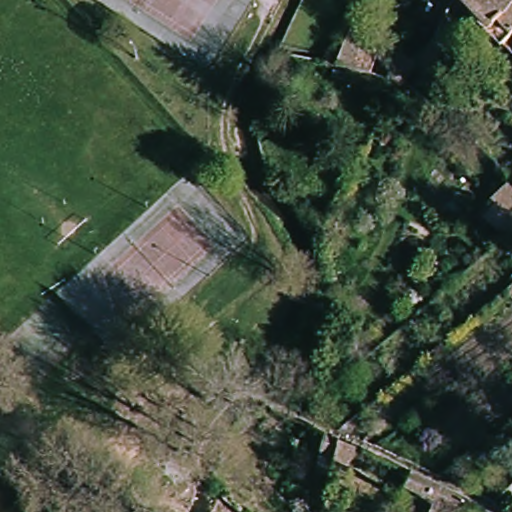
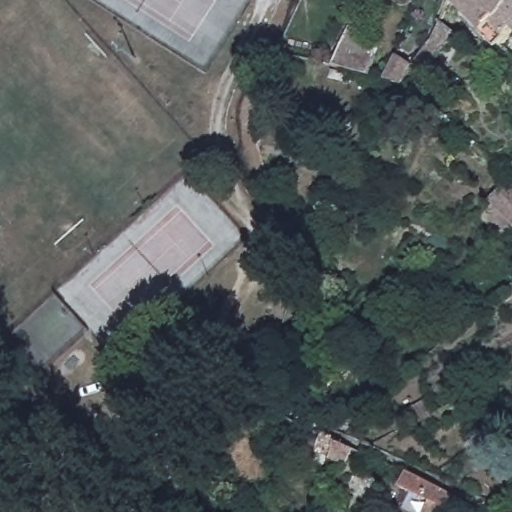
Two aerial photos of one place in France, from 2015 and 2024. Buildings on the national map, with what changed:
unchanged [(503,18),(512,27),(512,31),(500,46),(461,7),(453,0),(512,0),(512,8),(503,18)]
unchanged [(512,8),(512,27),(503,18),(512,8)]
unchanged [(427,76),(417,67),(407,90),(385,82),(398,53),(414,65),(449,13),(467,35),(427,76)]
unchanged [(379,50),(367,81),(335,72),(343,40),(350,43),(353,36),(379,50)]
unchanged [(489,200),(508,178),(512,182),(512,221),(489,200)]
unchanged [(328,482),(315,479),(324,437),(337,444),(328,482)]
unchanged [(458,512),(430,512),(433,506),(405,492),(412,472),(467,498),(458,512)]

